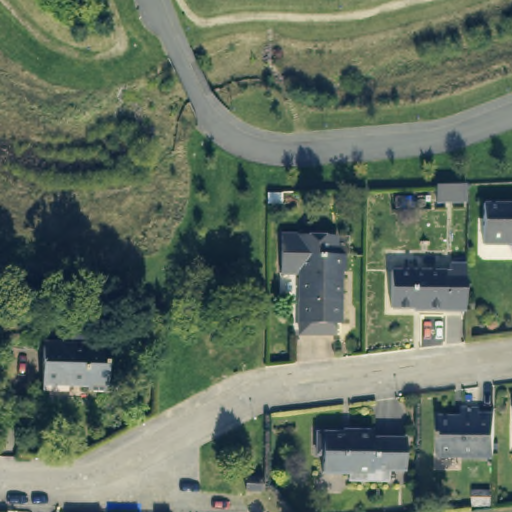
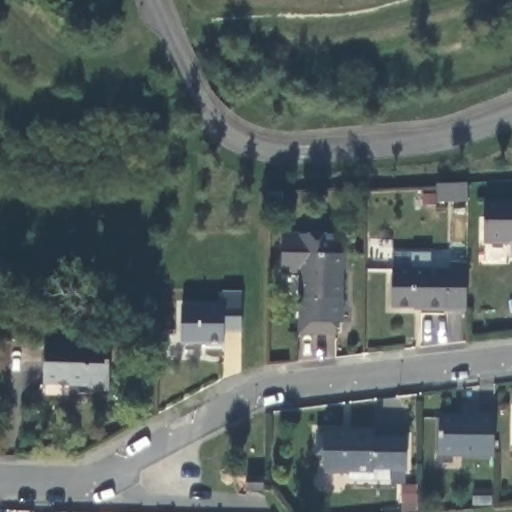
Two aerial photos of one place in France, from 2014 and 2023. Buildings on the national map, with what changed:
unchanged [(510,242),(482,242),(483,203),(483,200),(512,201),(512,240),(510,240),(510,242)]
unchanged [(299,275),(281,275),(281,237),(335,237),(335,256),(342,256),(342,272),(338,272),(338,323),(335,323),(335,336),(299,336),(299,275)]
unchanged [(423,309),(423,307),(392,307),(392,270),(450,270),(450,263),(466,262),(466,309),(423,309)]
new [(185,310),(227,309),(227,294),(245,294),(245,307),(246,334),(227,335),(227,352),(210,352),(210,347),(185,347),(185,315),(185,310)]
unchanged [(47,346),(74,347),(74,342),(112,345),(111,391),(90,390),(90,383),(46,381),(47,346)]
unchanged [(440,455),(439,417),(462,417),(462,407),(480,407),(480,412),(495,411),(495,453),(440,455)]
unchanged [(379,432),(379,438),(410,438),(411,468),(396,468),(396,478),(355,478),(355,472),(328,472),(328,456),(322,452),(322,432),(379,432)]
unchanged [(234,476),(251,476),(251,490),(234,490),(234,476)]

